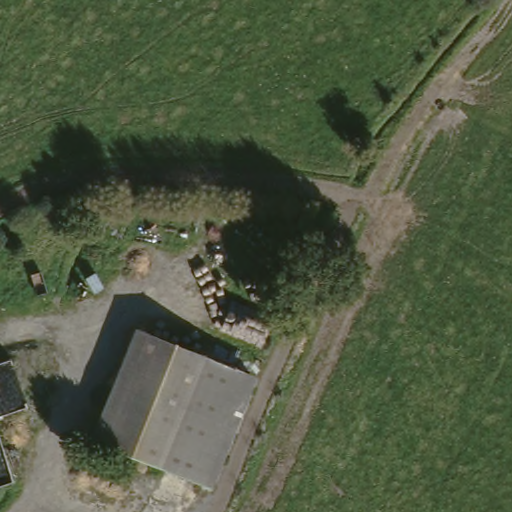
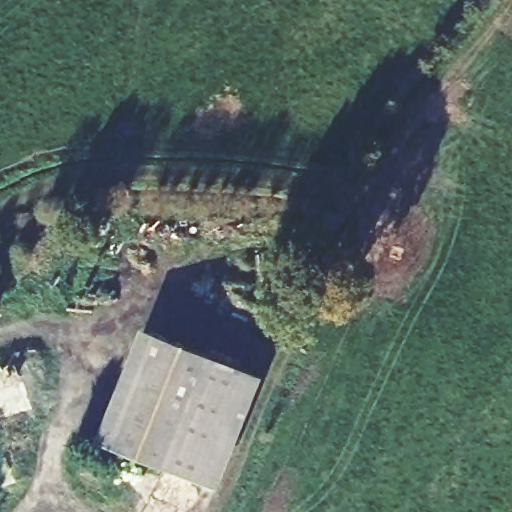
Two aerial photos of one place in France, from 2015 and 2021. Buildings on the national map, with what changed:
unchanged [(243,367),(196,482),(106,446),(153,330),(243,367)]

